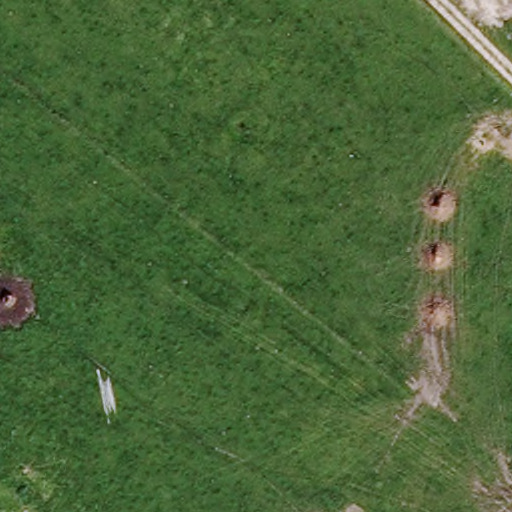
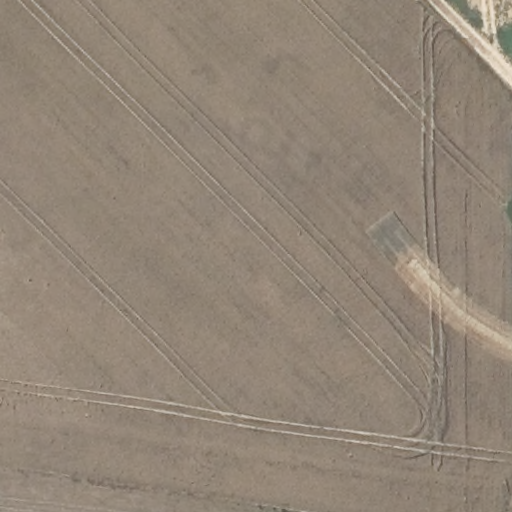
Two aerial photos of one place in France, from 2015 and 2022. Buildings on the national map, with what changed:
[]

